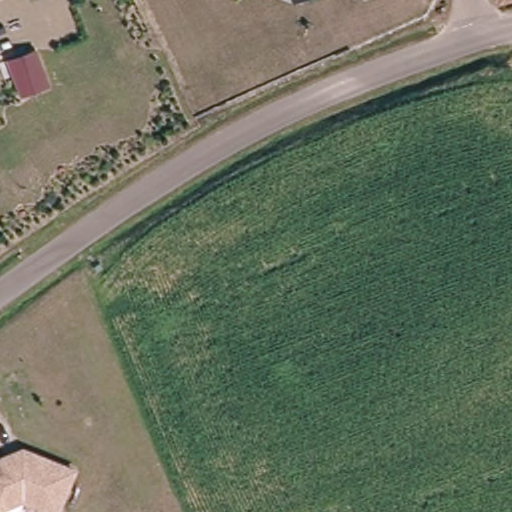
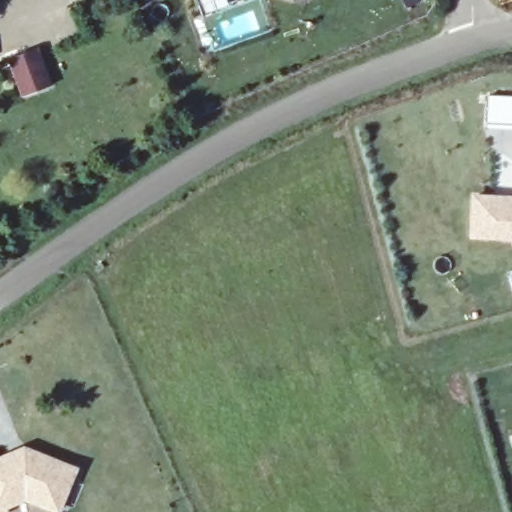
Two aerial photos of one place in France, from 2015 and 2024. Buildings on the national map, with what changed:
unchanged [(294,2),(293,0),(299,0),(294,2)]
unchanged [(501,2),(500,0),(510,0),(501,2)]
unchanged [(50,86),(21,96),(6,59),(35,48),(50,86)]
new [(486,128),(486,94),(512,95),(512,127),(486,128)]
new [(511,245),(512,241),(469,239),(472,194),(512,196),(512,246),(511,245)]
unchanged [(0,454),(4,451),(21,444),(25,445),(73,464),(56,506),(23,493),(2,502),(4,508),(0,510),(0,454)]

